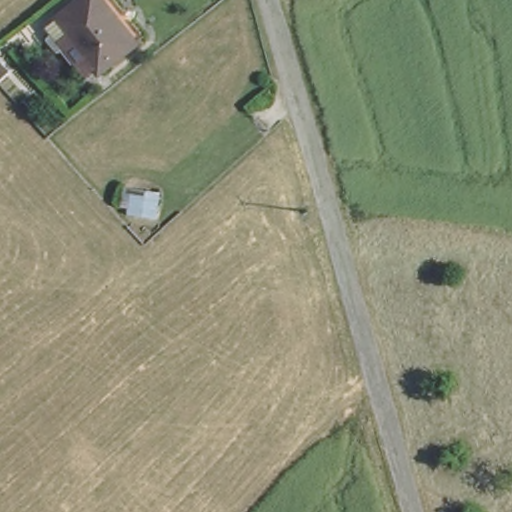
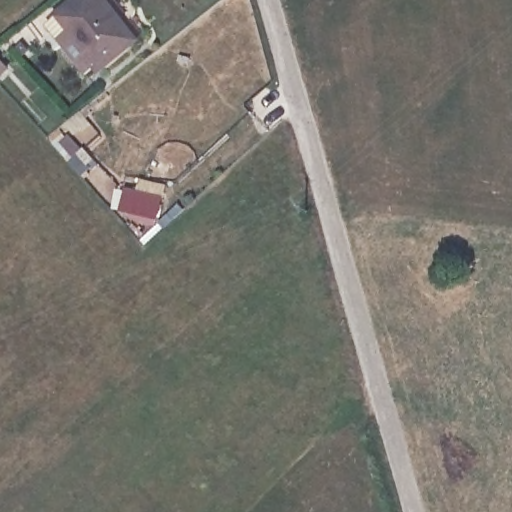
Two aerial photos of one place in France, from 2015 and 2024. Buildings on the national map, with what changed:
unchanged [(128,29),(142,50),(107,76),(67,24),(99,0),(115,0),(133,25),(128,29)]
new [(157,223),(119,212),(126,188),(136,191),(140,179),(167,187),(157,223)]

